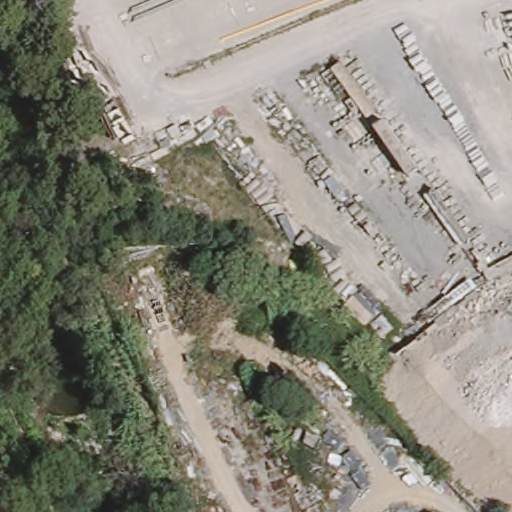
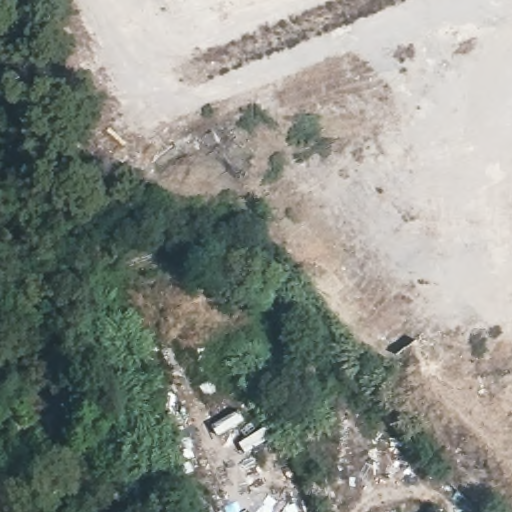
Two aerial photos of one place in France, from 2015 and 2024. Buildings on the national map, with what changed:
unchanged [(446,512),(444,512),(445,511),(446,512)]

